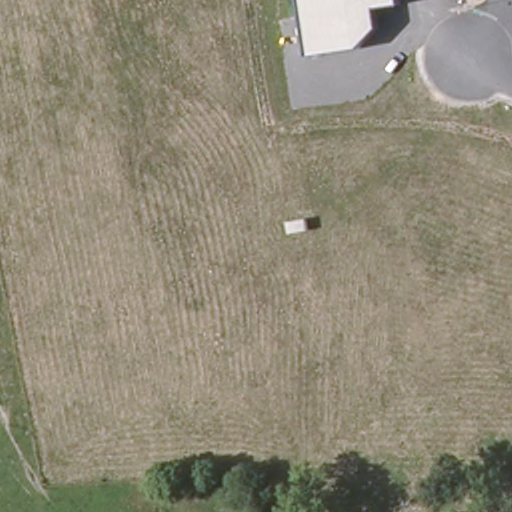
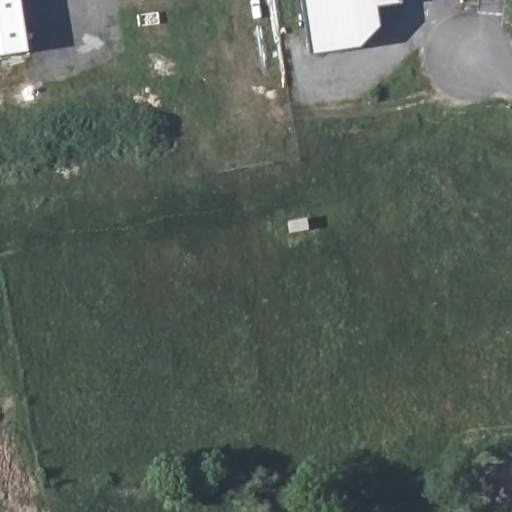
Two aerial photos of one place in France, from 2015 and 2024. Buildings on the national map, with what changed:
new [(27,51),(0,55),(0,0),(19,0),(27,51)]
unchanged [(377,7),(380,28),(359,48),(310,55),(301,0),(400,0),(401,4),(377,7)]

